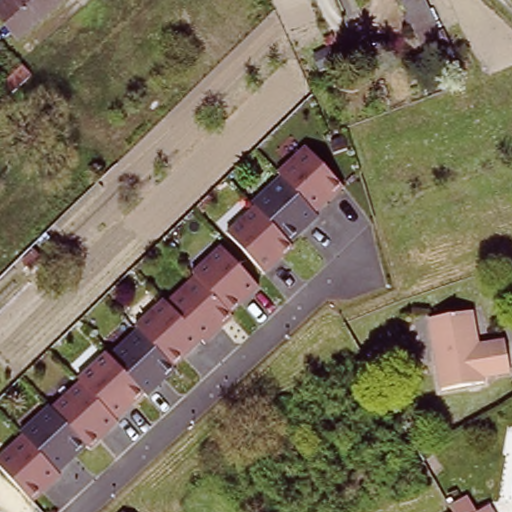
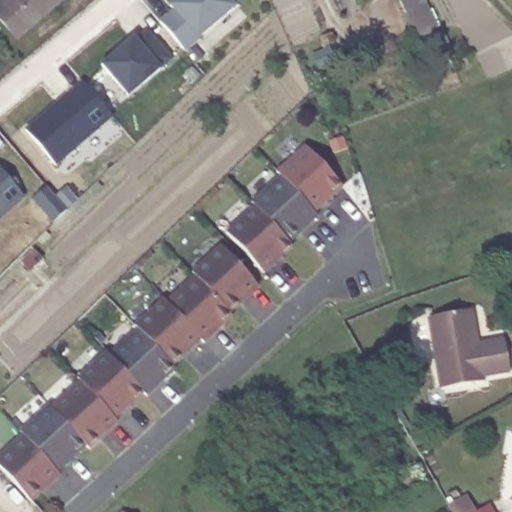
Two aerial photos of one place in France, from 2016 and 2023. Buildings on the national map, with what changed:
unchanged [(0,22),(0,2),(3,0),(63,0),(14,40),(0,22)]
new [(170,8),(179,0),(226,0),(233,9),(183,52),(159,24),(172,12),(170,8)]
unchanged [(418,48),(398,2),(402,0),(422,0),(439,39),(418,48)]
new [(163,71),(163,68),(130,98),(102,66),(133,36),(138,40),(151,29),(177,59),(163,71)]
new [(81,84),(111,118),(54,166),(25,132),(81,84)]
unchanged [(341,185),(266,276),(225,232),(306,147),(341,185)]
new [(0,223),(0,165),(28,200),(0,223)]
unchanged [(258,288),(32,504),(0,471),(0,449),(220,246),(258,288)]
unchanged [(470,310),(475,334),(471,335),(472,341),(476,344),(504,340),(510,371),(483,376),(484,380),(440,388),(427,317),(470,310)]
unchanged [(512,492),(512,500),(510,500),(512,492)]
unchanged [(477,511),(490,505),(494,512),(453,512),(449,505),(466,495),(477,511)]

